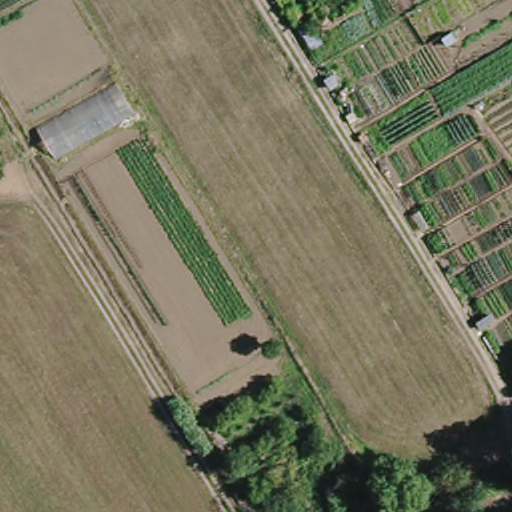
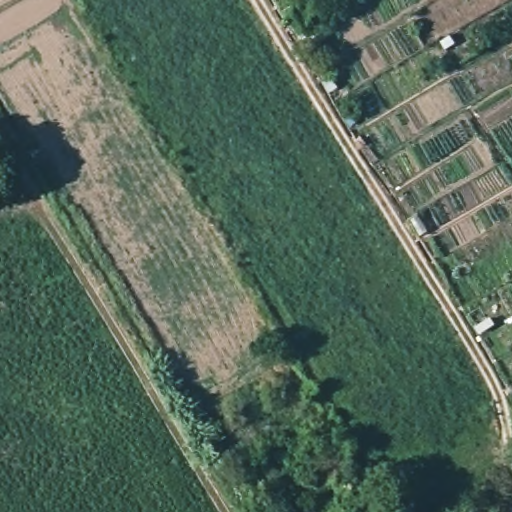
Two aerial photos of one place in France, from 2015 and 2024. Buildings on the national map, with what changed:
demolished [(112,83),(134,119),(56,166),(32,127),(112,83)]

